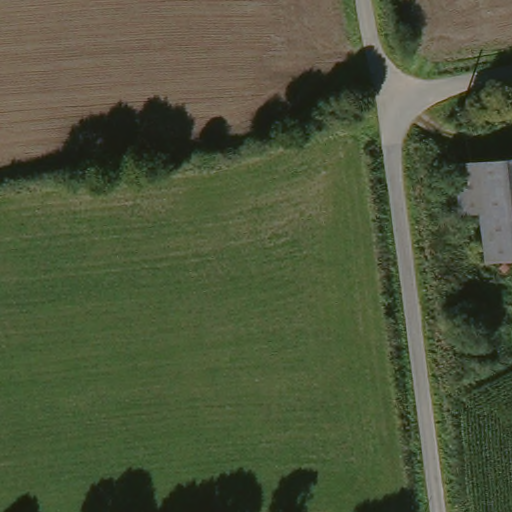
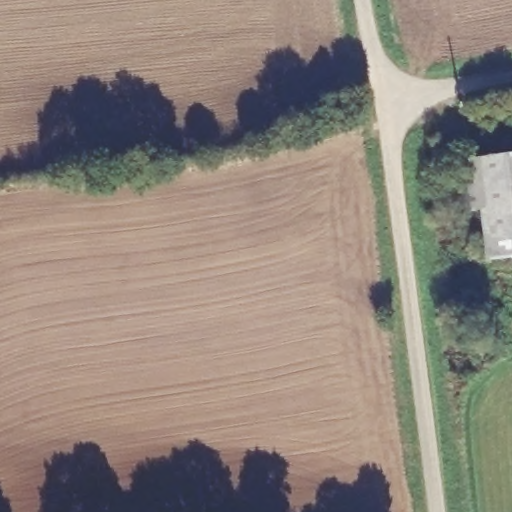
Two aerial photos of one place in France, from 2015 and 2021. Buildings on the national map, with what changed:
unchanged [(512,260),(485,264),(478,213),(471,160),(512,155),(512,260)]
unchanged [(456,216),(449,163),(471,160),(478,213),(456,216)]

